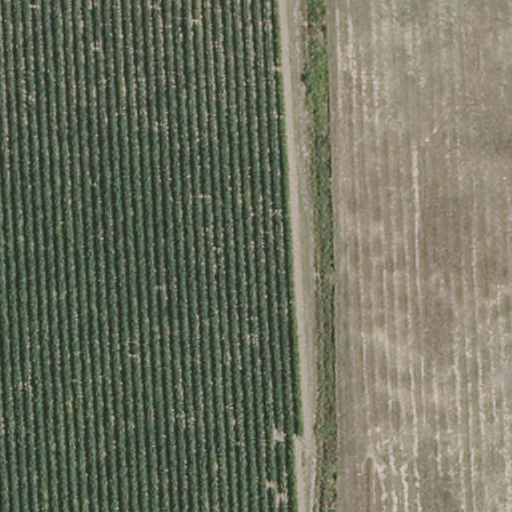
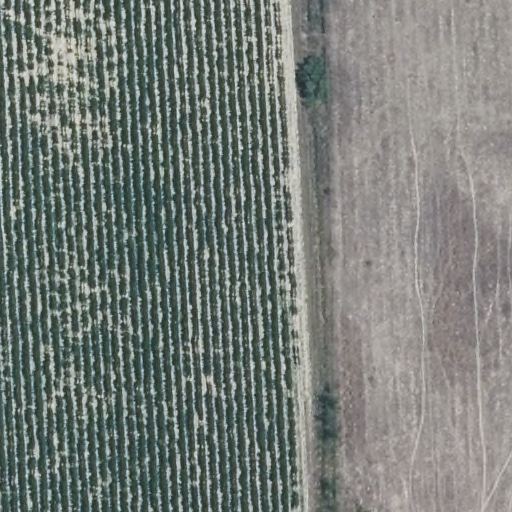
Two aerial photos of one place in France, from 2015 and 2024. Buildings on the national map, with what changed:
[]

